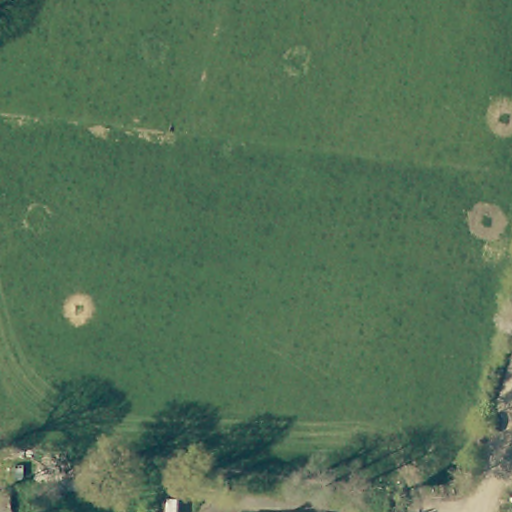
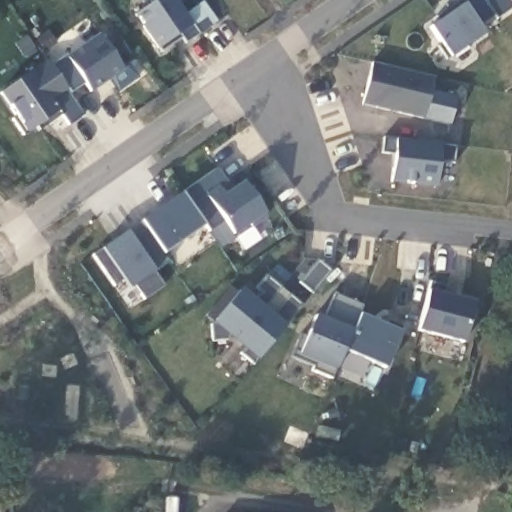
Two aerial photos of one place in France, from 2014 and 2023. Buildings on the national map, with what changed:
new [(133,14),(153,0),(177,0),(186,14),(204,1),(218,21),(187,44),(181,36),(161,50),(133,14)]
new [(440,21),(436,16),(460,0),(512,0),(512,9),(497,19),(495,17),(481,28),(485,35),(453,58),(430,27),(440,21)]
new [(0,92),(48,62),(51,65),(100,34),(124,69),(91,91),(85,82),(70,92),(85,117),(71,126),(60,111),(28,133),(0,92)]
new [(364,105),(373,63),(434,76),(425,119),(364,105)]
new [(394,154),(384,152),(386,137),(457,144),(454,165),(440,164),(437,186),(392,182),(394,154)]
new [(94,254),(101,250),(128,230),(133,238),(147,228),(142,220),(183,194),(219,170),(228,182),(220,187),(224,193),(243,180),(266,214),(234,234),(225,221),(210,230),(206,225),(164,254),(171,262),(156,272),(165,284),(145,298),(135,285),(130,289),(127,285),(123,281),(115,286),(94,254)]
new [(213,320),(243,287),(257,300),(262,291),(257,286),(266,276),(302,305),(286,324),(257,358),(253,363),(242,355),(245,350),(227,336),(225,340),(213,342),(213,320)]
new [(429,290),(431,282),(446,287),(445,293),(473,301),(463,342),(418,331),(429,290)]
new [(345,350),(333,377),(313,370),(315,365),(293,355),(301,335),(307,337),(316,312),(328,318),(336,295),(363,307),(360,313),(403,330),(387,368),(345,350)]

